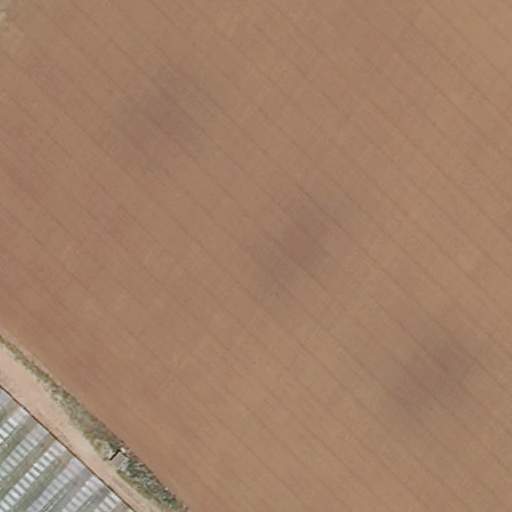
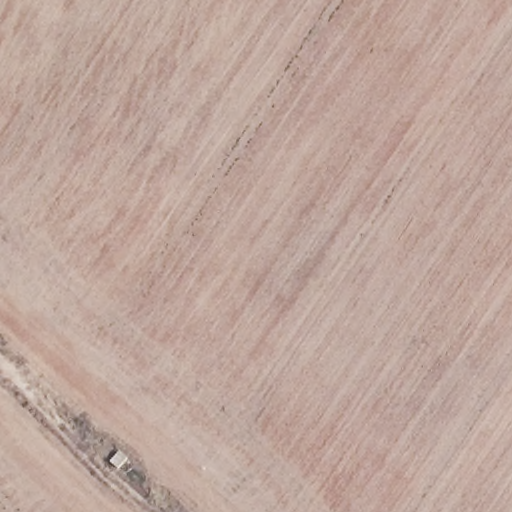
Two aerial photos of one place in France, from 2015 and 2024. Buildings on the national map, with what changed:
demolished [(128,512),(0,512),(0,394),(128,512)]

